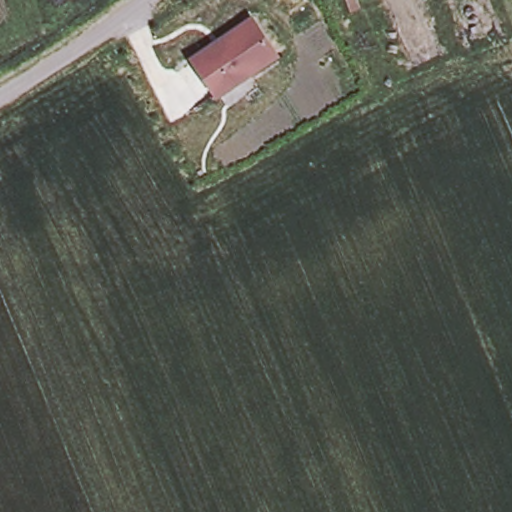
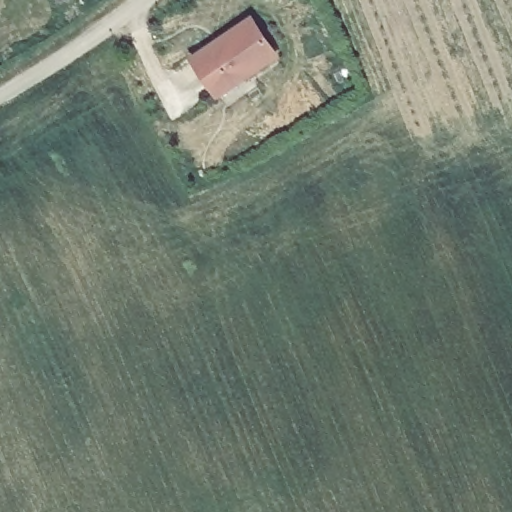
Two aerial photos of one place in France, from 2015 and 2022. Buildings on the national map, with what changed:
unchanged [(249,22),(272,55),(213,95),(191,61),(249,22)]

